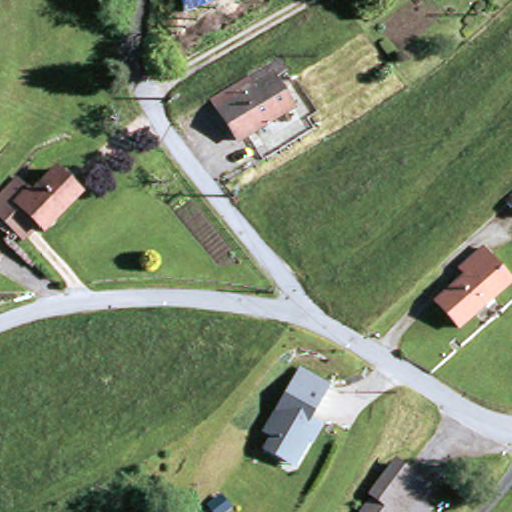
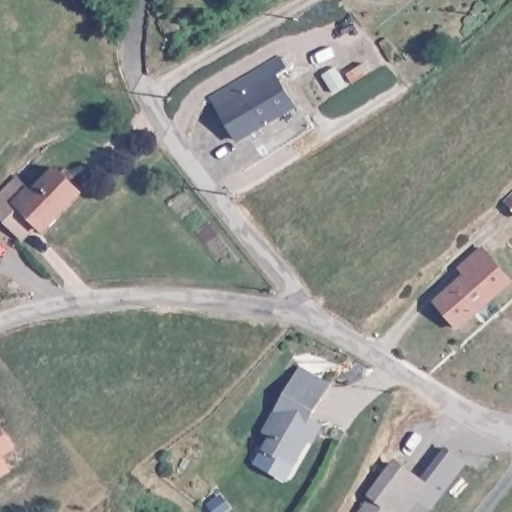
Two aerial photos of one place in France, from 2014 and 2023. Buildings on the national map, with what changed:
unchanged [(211,101),(275,61),(283,72),(273,79),(292,108),(238,142),(211,101)]
unchanged [(30,188),(60,165),(80,191),(40,227),(35,222),(19,236),(0,214),(0,189),(19,174),(30,188)]
unchanged [(506,202),(512,196),(512,207),(506,202)]
unchanged [(480,247),(509,279),(458,326),(435,302),(465,274),(458,267),(480,247)]
unchanged [(284,463),(264,451),(271,438),(263,433),(299,372),(326,387),(311,414),(308,412),(305,418),(319,427),(310,443),(305,441),(298,453),(290,467),(284,463)]
new [(0,456),(0,430),(12,447),(0,456)]
new [(0,476),(0,459),(8,471),(0,476)]
unchanged [(425,502),(418,512),(358,512),(357,512),(388,461),(418,478),(410,492),(425,502)]

